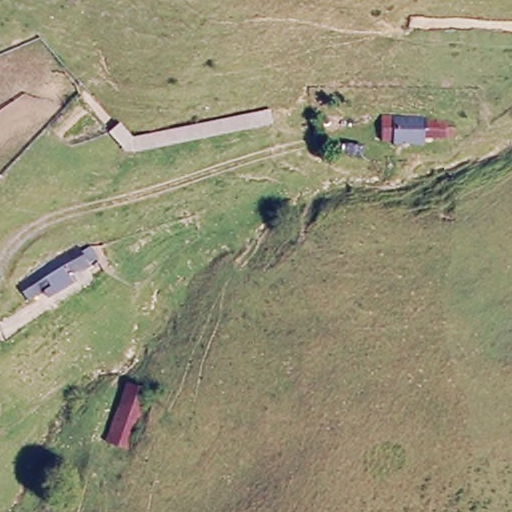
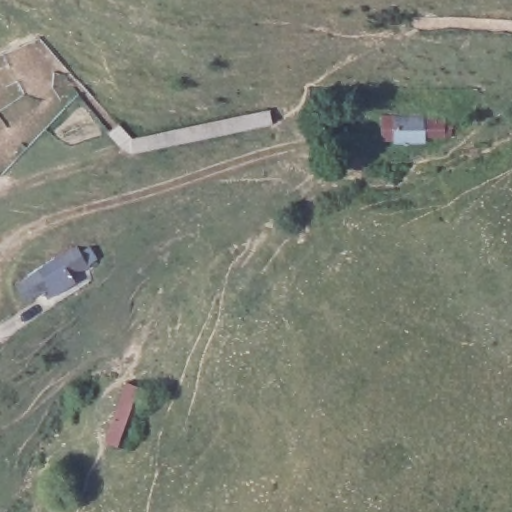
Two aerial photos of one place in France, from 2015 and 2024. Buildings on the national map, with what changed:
unchanged [(273,125),(132,153),(121,148),(107,134),(119,122),(132,136),(269,109),(273,125)]
unchanged [(410,120),(411,128),(433,126),(434,135),(415,137),(415,141),(386,145),(383,124),(410,120)]
unchanged [(89,261),(29,297),(18,278),(77,239),(89,261)]
unchanged [(144,396),(131,440),(112,434),(124,391),(144,396)]

